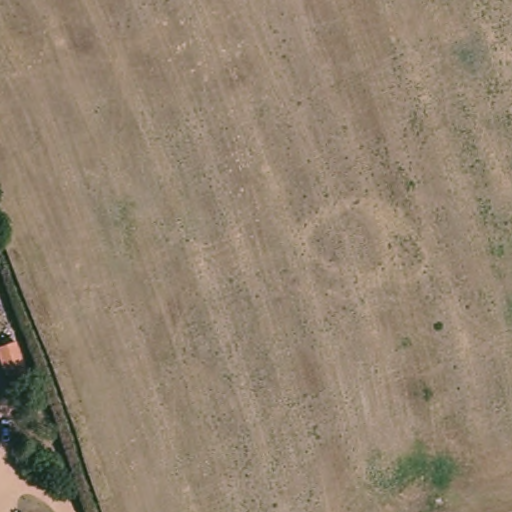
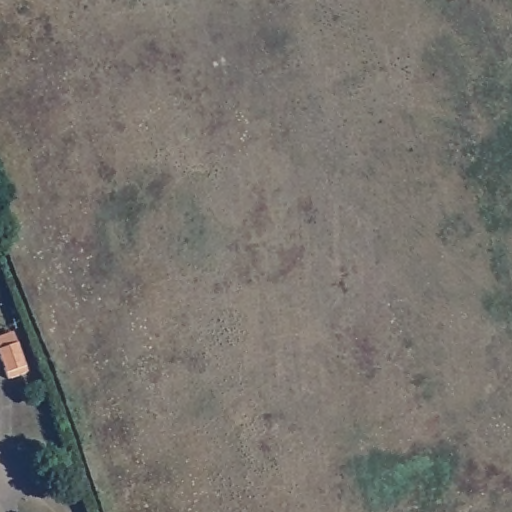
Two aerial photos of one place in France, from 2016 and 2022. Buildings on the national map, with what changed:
unchanged [(25,360),(2,368),(0,362),(0,338),(14,333),(25,360)]

